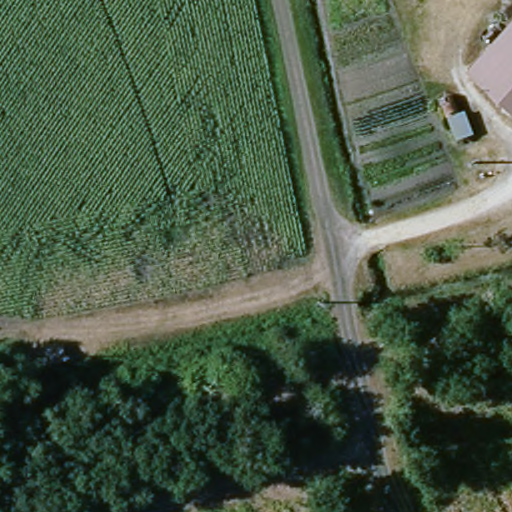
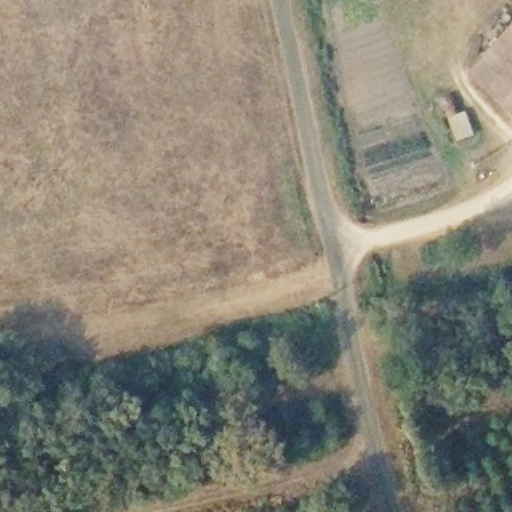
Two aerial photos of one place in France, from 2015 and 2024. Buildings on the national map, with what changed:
unchanged [(476,71),(512,32),(512,104),(476,71)]

